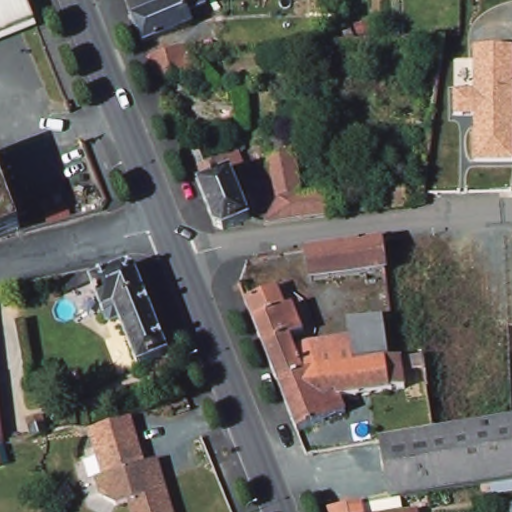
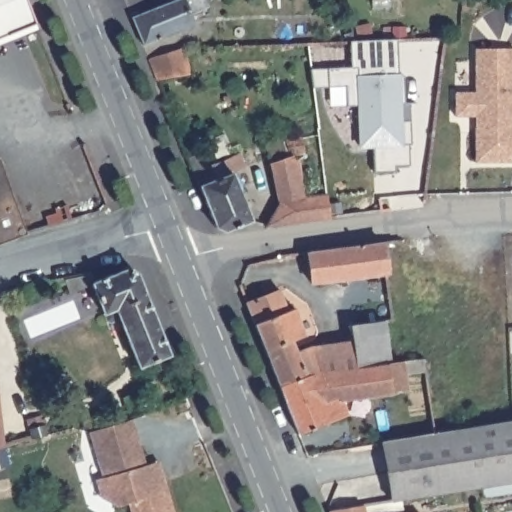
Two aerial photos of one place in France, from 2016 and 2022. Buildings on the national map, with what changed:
unchanged [(29,0),(38,22),(0,37),(0,0),(29,0)]
unchanged [(196,23),(186,27),(182,27),(145,45),(133,14),(170,0),(207,0),(208,1),(190,9),(196,23)]
new [(348,41),(395,39),(397,74),(402,74),(403,102),(408,102),(410,144),(407,145),(408,166),(394,166),(394,171),(372,172),(371,143),(360,144),(358,105),(345,106),(344,86),(326,87),(312,87),(310,68),(325,68),(349,67),(348,41)]
unchanged [(454,116),(454,91),(474,91),(474,47),(512,48),(512,161),(475,163),(474,116),(454,116)]
unchanged [(190,48),(193,73),(159,79),(147,49),(190,48)]
unchanged [(270,144),(291,136),(293,143),(306,138),(313,154),(307,156),(305,196),(330,194),(334,218),(270,226),(276,207),(277,163),(270,144)]
unchanged [(242,154),(247,169),(236,174),(253,220),(228,231),(218,227),(196,172),(212,165),(242,154)]
unchanged [(25,230),(0,238),(0,166),(25,230)]
unchanged [(387,191),(403,189),(406,207),(373,212),(371,194),(387,191)]
unchanged [(387,243),(391,276),(316,286),(310,253),(387,243)]
unchanged [(69,288),(66,274),(92,269),(94,280),(130,266),(140,271),(172,353),(141,365),(120,316),(108,319),(98,293),(81,298),(79,290),(69,288)]
unchanged [(283,288),(291,308),(295,306),(307,336),(295,342),(299,352),(313,347),(356,343),(354,324),(387,321),(393,364),(320,371),(281,385),(249,301),(283,288)]
unchanged [(401,362),(425,357),(426,371),(403,373),(406,390),(390,394),(343,401),(347,415),(299,430),(281,385),(320,371),(393,364),(401,362)]
unchanged [(3,439),(27,433),(29,443),(5,449),(11,470),(0,473),(0,416),(3,439)]
unchanged [(130,501),(121,502),(104,492),(99,476),(106,474),(92,429),(134,416),(147,462),(162,458),(177,512),(133,512),(130,501)]
unchanged [(45,417),(50,437),(34,442),(29,421),(45,417)]
unchanged [(512,484),(397,501),(388,443),(512,424),(512,484)]
unchanged [(370,500),(372,512),(334,512),(332,506),(370,500)]

